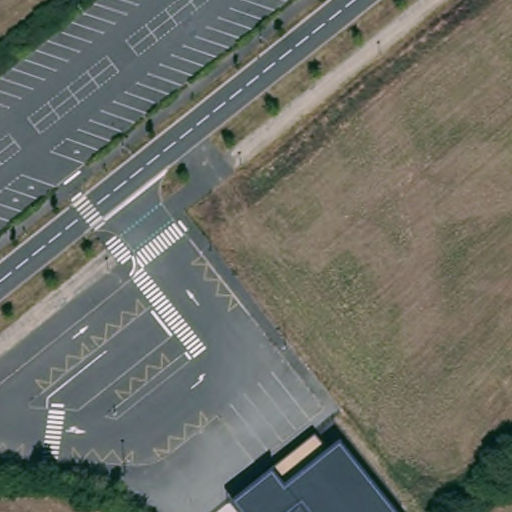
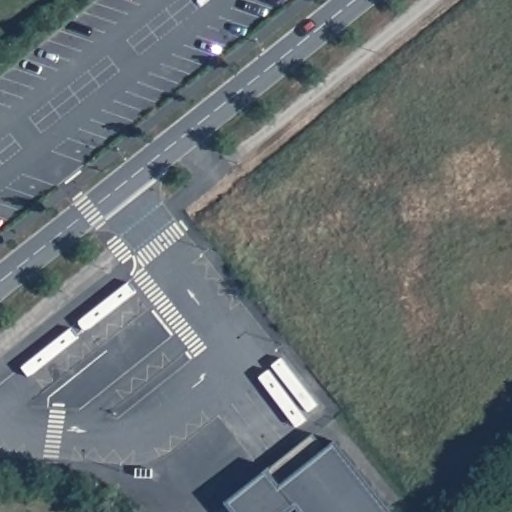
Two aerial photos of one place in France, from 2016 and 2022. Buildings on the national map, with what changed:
unchanged [(267,474),(313,437),(326,453),(336,445),(390,512),(234,512),(228,505),(267,474)]

